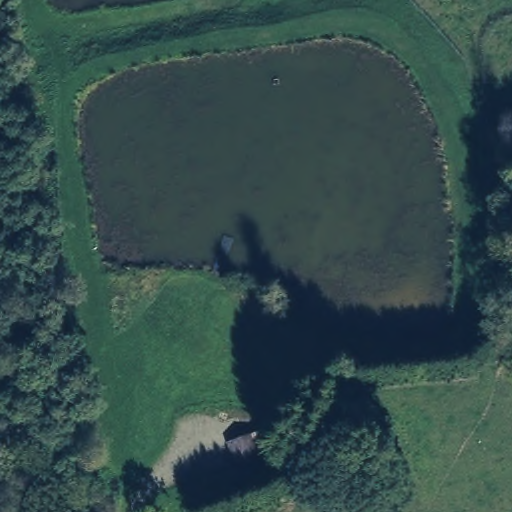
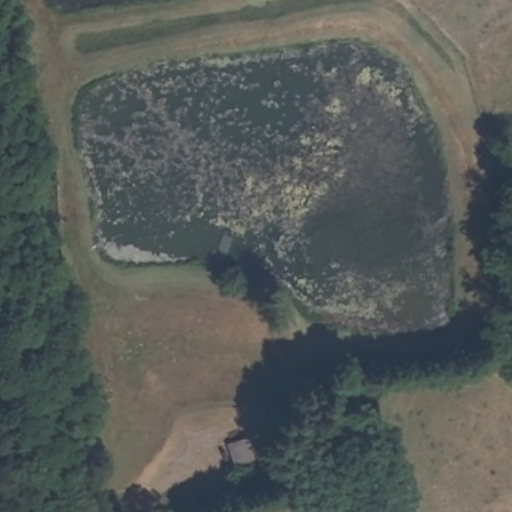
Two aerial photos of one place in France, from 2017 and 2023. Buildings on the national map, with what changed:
unchanged [(254,434),(264,462),(236,469),(229,446),(254,434)]

